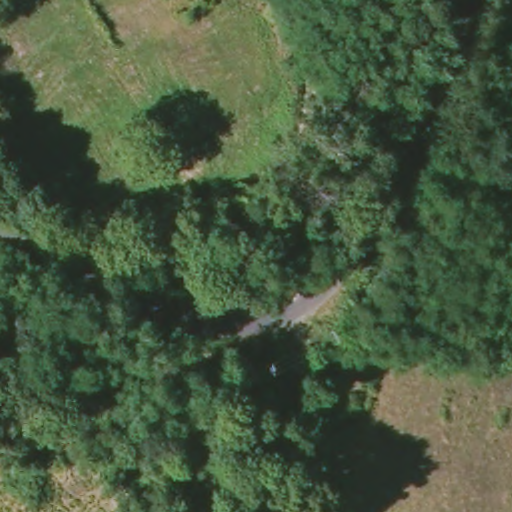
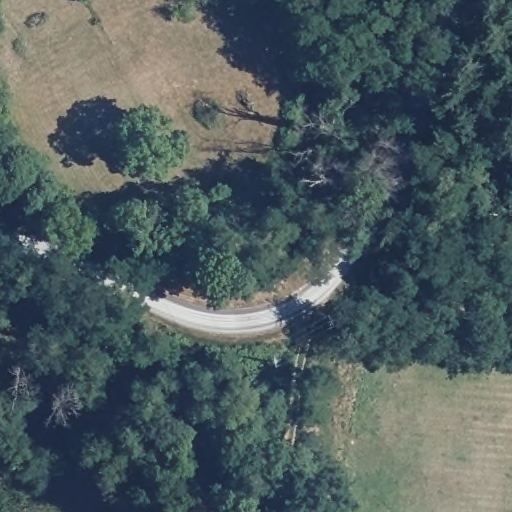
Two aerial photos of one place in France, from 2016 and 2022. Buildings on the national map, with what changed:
unchanged [(267,362),(268,351),(278,350),(278,361),(267,362)]

